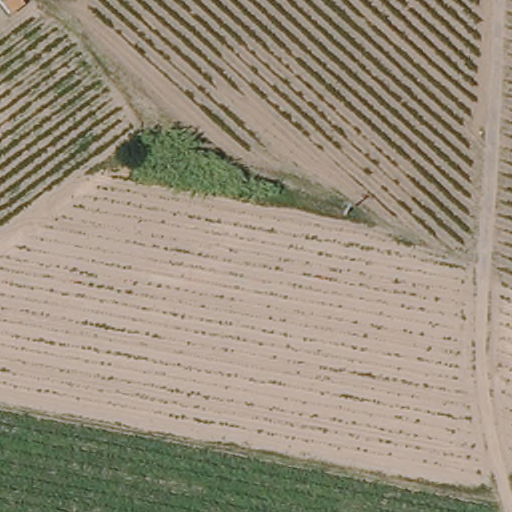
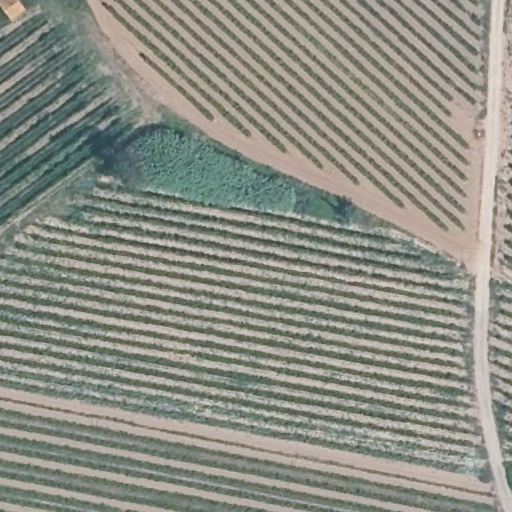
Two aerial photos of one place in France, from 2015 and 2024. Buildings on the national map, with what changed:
unchanged [(8,18),(0,6),(0,0),(27,0),(28,0),(8,18)]

